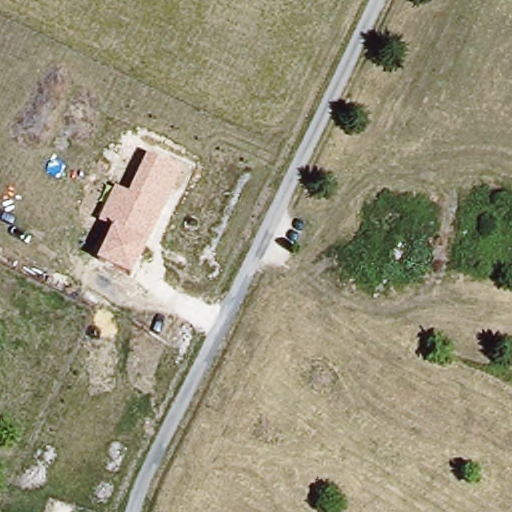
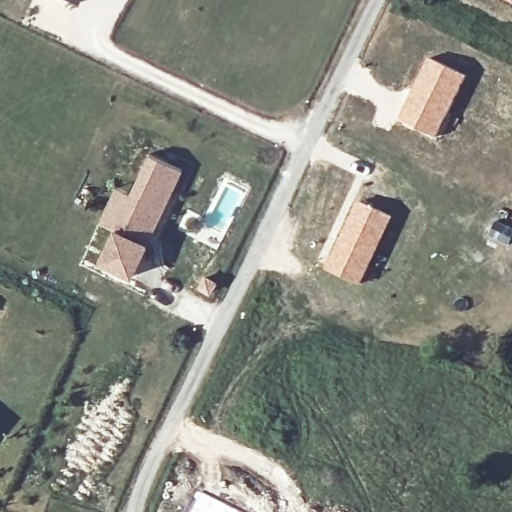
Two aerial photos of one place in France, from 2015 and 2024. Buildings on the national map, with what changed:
new [(78,3),(73,0),(79,0),(78,3)]
new [(512,3),(507,0),(512,0),(512,3)]
new [(428,57),(467,75),(436,139),(397,121),(428,57)]
unchanged [(150,155),(184,170),(135,276),(101,261),(150,155)]
new [(358,198),(393,217),(361,285),(323,268),(358,198)]

